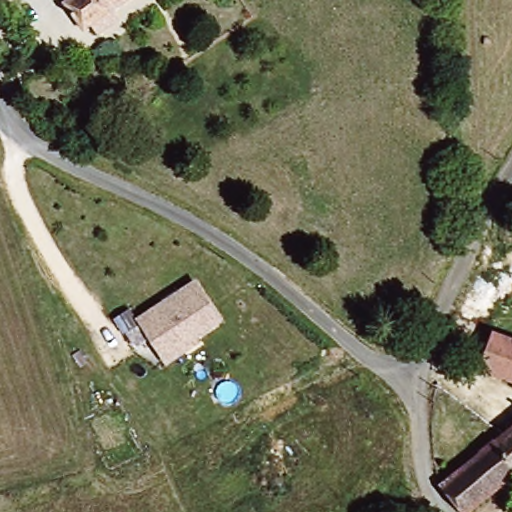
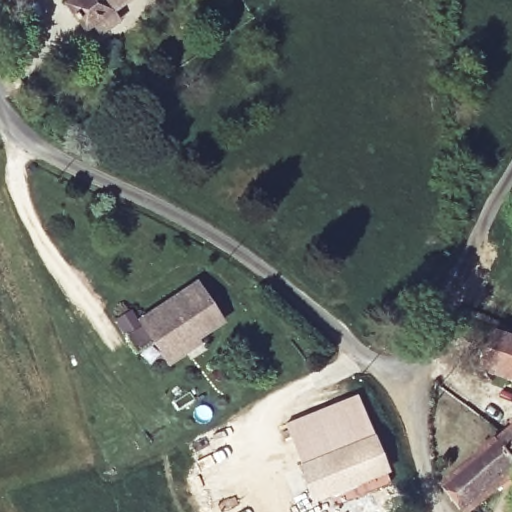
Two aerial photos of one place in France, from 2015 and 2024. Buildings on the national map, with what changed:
unchanged [(133,0),(86,32),(68,5),(75,0),(133,0)]
unchanged [(170,363),(155,340),(142,318),(200,283),(225,322),(199,339),(201,343),(170,363)]
unchanged [(493,340),(512,347),(512,388),(480,376),(493,340)]
new [(357,394),(373,435),(301,463),(285,423),(357,394)]
unchanged [(442,485),(512,430),(512,484),(475,512),(462,512),(442,485)]
new [(388,472),(312,503),(297,465),(373,435),(388,472)]

